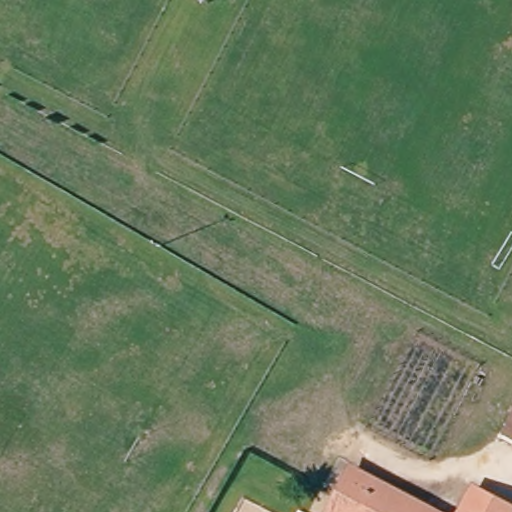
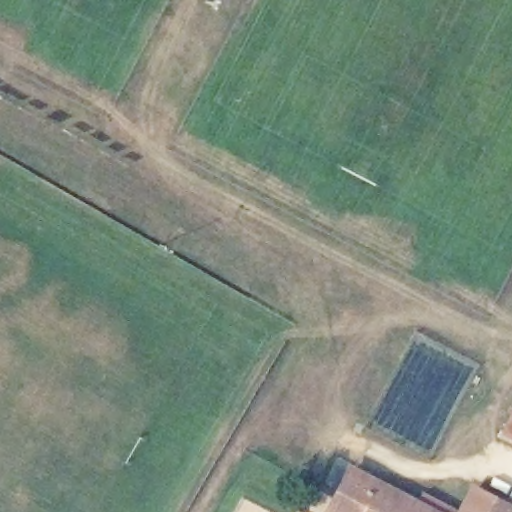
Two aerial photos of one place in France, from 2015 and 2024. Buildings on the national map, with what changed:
unchanged [(512,415),(512,437),(502,432),(512,415)]
unchanged [(434,512),(337,512),(360,473),(434,512)]
unchanged [(512,505),(512,512),(466,512),(478,490),(512,505)]

